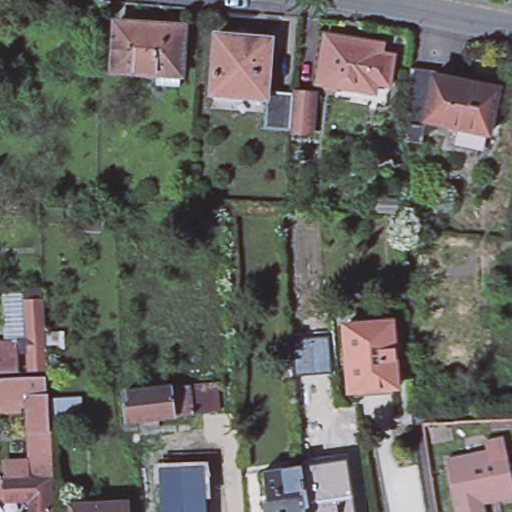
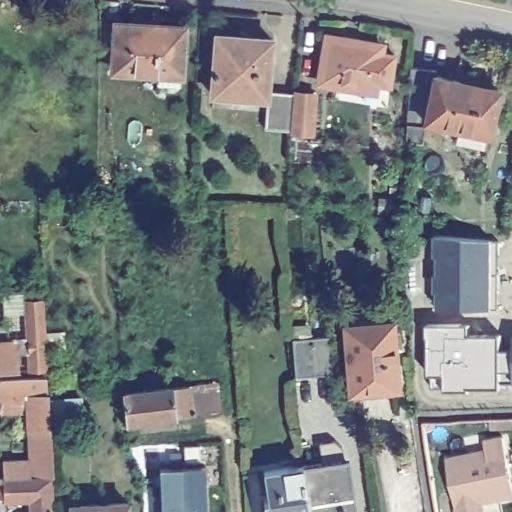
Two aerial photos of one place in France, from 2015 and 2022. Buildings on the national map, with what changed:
unchanged [(190,22),(186,82),(110,74),(112,15),(190,22)]
unchanged [(392,44),(380,97),(314,85),(327,28),(392,44)]
unchanged [(279,32),(280,89),(319,91),(315,136),(265,128),(269,102),(211,101),(217,29),(279,32)]
unchanged [(507,82),(494,137),(420,122),(435,70),(507,82)]
unchanged [(103,204),(107,204),(109,232),(79,232),(79,204),(103,204)]
new [(499,244),(499,313),(438,313),(438,242),(499,244)]
unchanged [(52,477),(52,512),(28,512),(28,501),(4,502),(4,492),(0,493),(0,475),(4,475),(4,458),(29,457),(27,433),(24,400),(0,399),(0,340),(12,339),(11,294),(47,290),(52,397),(82,397),(85,427),(53,430),(57,476),(54,477),(52,477)]
unchanged [(347,396),(344,320),(397,312),(405,390),(347,396)]
new [(466,327),(466,340),(496,338),(496,354),(512,353),(512,340),(512,387),(510,383),(497,383),(496,391),(465,391),(465,393),(442,394),(442,390),(430,391),(430,380),(425,379),(424,329),(466,327)]
unchanged [(330,336),(334,373),(295,377),(292,339),(330,336)]
unchanged [(195,382),(197,416),(180,417),(126,420),(122,385),(195,382)]
unchanged [(488,502),(489,512),(460,512),(449,457),(507,445),(512,467),(512,497),(488,502)]
new [(313,512),(307,465),(349,458),(357,512),(313,512)]
unchanged [(269,512),(265,468),(306,463),(313,512),(269,512)]
unchanged [(208,512),(185,512),(182,469),(205,468),(208,512)]
unchanged [(185,512),(162,512),(160,470),(182,469),(185,512)]
unchanged [(68,512),(67,503),(134,495),(134,512),(68,512)]

